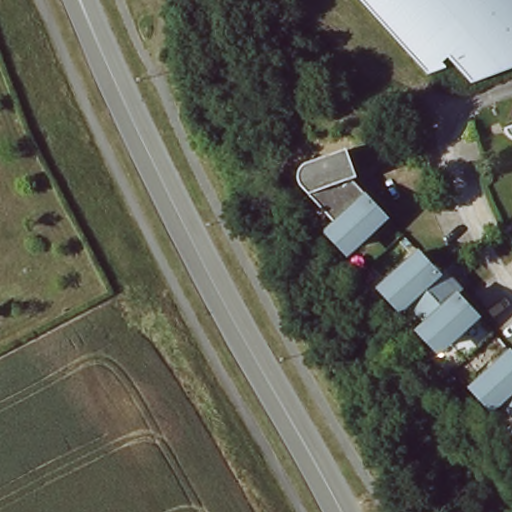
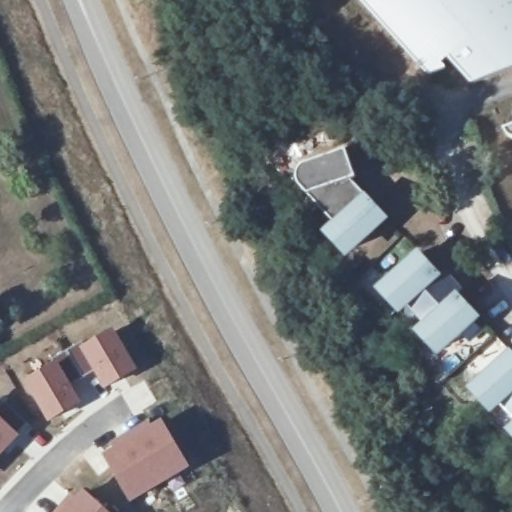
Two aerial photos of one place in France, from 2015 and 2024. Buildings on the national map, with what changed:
unchanged [(470,89),(446,63),(440,68),(443,74),(427,80),(354,0),(512,0),(512,74),(470,89)]
unchanged [(512,140),(510,139),(507,137),(505,133),(504,132),(504,130),(512,127),(512,140)]
unchanged [(366,196),(387,218),(355,247),(352,250),(347,251),(342,251),(337,249),(334,246),(331,242),(330,237),(330,232),(332,228),(335,225),(308,196),(300,189),(298,185),(297,182),(297,180),(297,177),(298,174),(298,172),(300,170),(301,169),(303,167),(304,166),(306,165),(347,150),(357,180),(345,184),(360,201),(366,196)]
unchanged [(417,313),(408,303),(404,306),(400,307),(395,307),(390,305),(387,302),(384,298),(383,293),(383,289),(385,284),(387,281),(418,252),(443,279),(448,274),(454,279),(417,313)]
unchanged [(454,279),(459,285),(453,290),(478,317),(447,345),(443,348),(438,349),(433,349),(429,347),(426,345),(423,340),(422,335),(422,331),(424,326),(427,323),(417,313),(454,279)]
new [(52,363),(51,361),(82,342),(83,344),(113,328),(137,369),(105,388),(94,373),(72,386),(81,401),(47,422),(22,380),(52,363)]
unchanged [(505,408),(501,410),(496,411),(492,411),(487,409),(483,407),(481,402),(480,398),(480,393),(482,388),(485,386),(512,360),(512,415),(505,408)]
new [(26,424),(17,433),(19,435),(0,455),(0,407),(4,403),(26,424)]
new [(162,420),(189,466),(128,502),(101,454),(162,420)]
new [(106,512),(61,512),(81,490),(106,512)]

